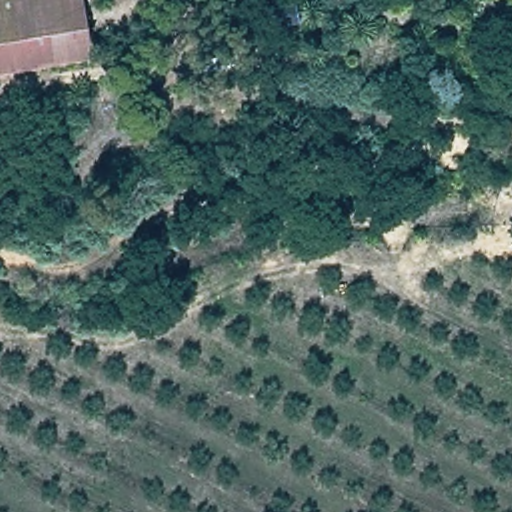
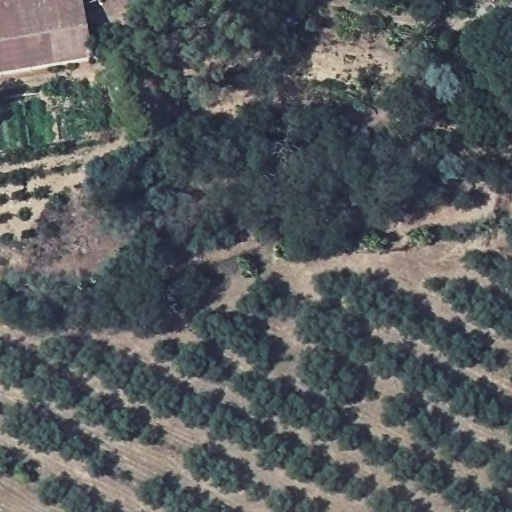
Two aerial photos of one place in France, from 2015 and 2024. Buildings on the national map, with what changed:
unchanged [(0,81),(0,0),(77,0),(105,62),(0,81)]

